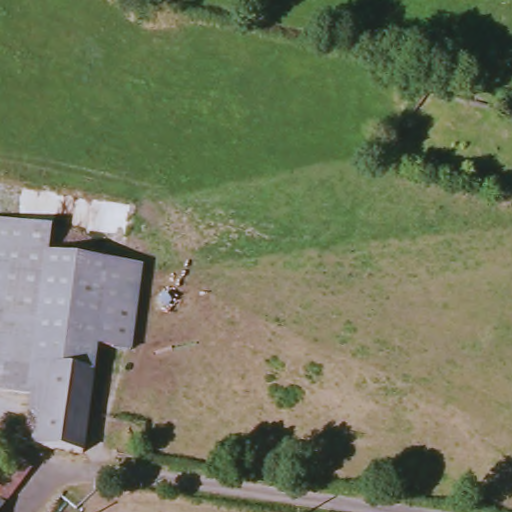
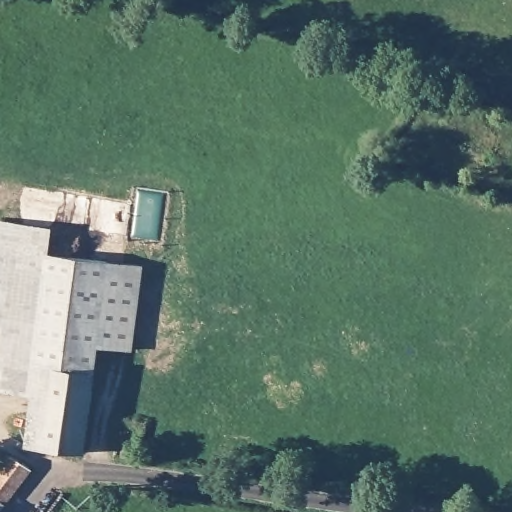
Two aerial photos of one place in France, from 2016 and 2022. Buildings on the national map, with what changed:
unchanged [(0,222),(66,229),(63,255),(52,253),(46,295),(9,290),(0,289),(0,222)]
unchanged [(37,367),(46,295),(52,253),(63,255),(113,261),(102,346),(90,440),(29,430),(34,393),(37,367)]
unchanged [(147,265),(136,350),(102,346),(113,261),(147,265)]
unchanged [(0,356),(9,290),(46,295),(37,367),(34,393),(21,392),(0,390),(0,356)]
unchanged [(112,436),(137,437),(137,462),(112,461),(112,436)]
unchanged [(31,468),(0,509),(0,466),(10,453),(31,468)]

